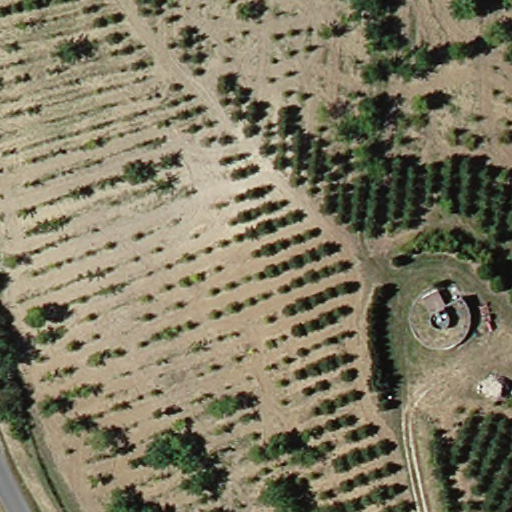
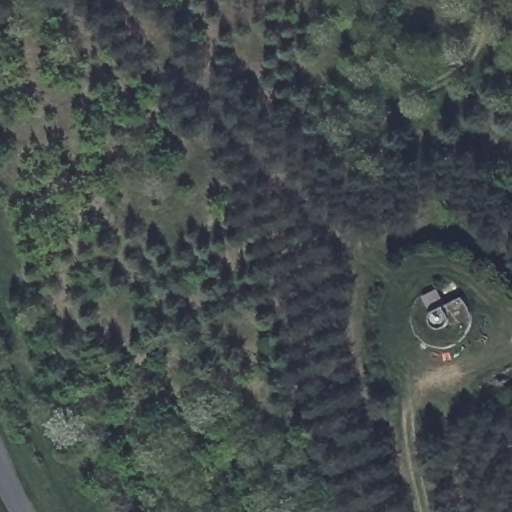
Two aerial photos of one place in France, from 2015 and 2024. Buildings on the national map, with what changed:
unchanged [(451,307),(453,314),(453,318),(452,321),(450,324),(447,327),(442,327),(439,327),(437,326),(434,324),(432,320),(433,314),(436,311),(447,305),(451,307)]

